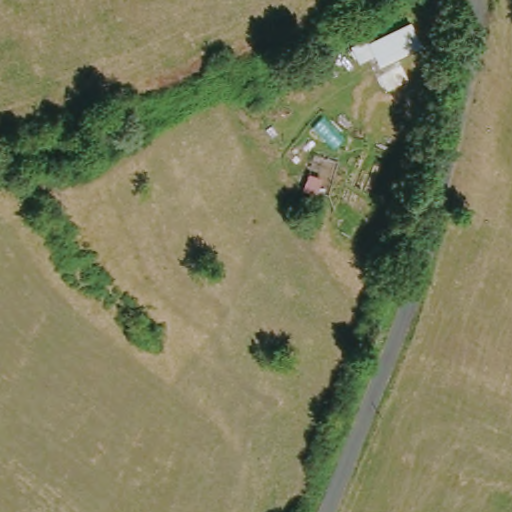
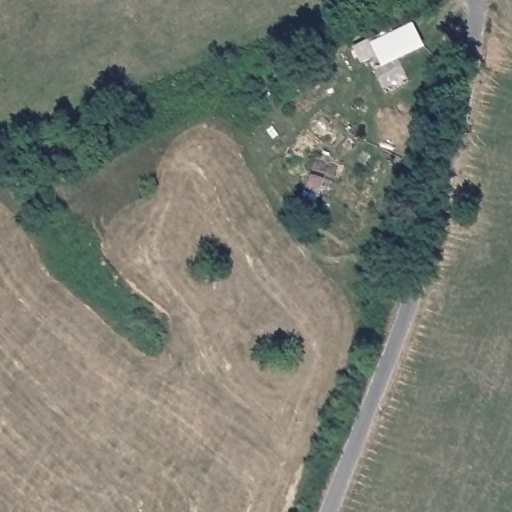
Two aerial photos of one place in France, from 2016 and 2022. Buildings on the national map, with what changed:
unchanged [(377,41),(379,43),(418,26),(427,46),(388,63),(384,55),(365,62),(359,47),(377,41)]

